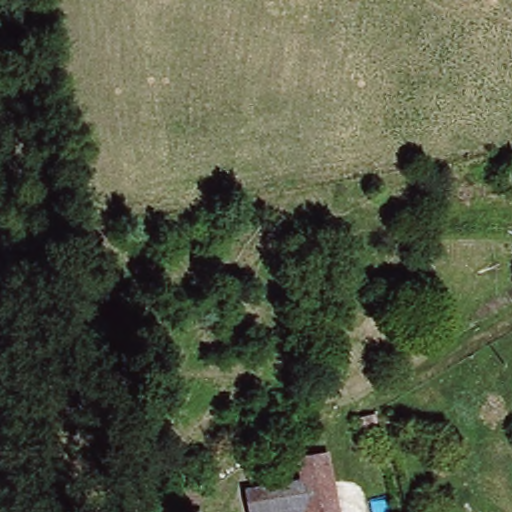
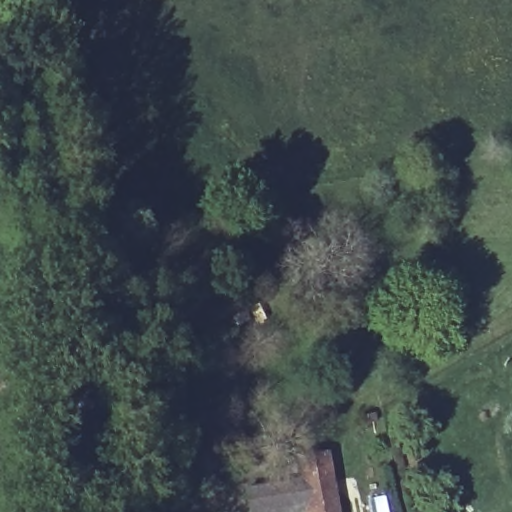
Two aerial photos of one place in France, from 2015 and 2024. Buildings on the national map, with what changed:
unchanged [(252,490),(308,480),(305,458),(334,453),(343,512),(256,512),(252,490)]

